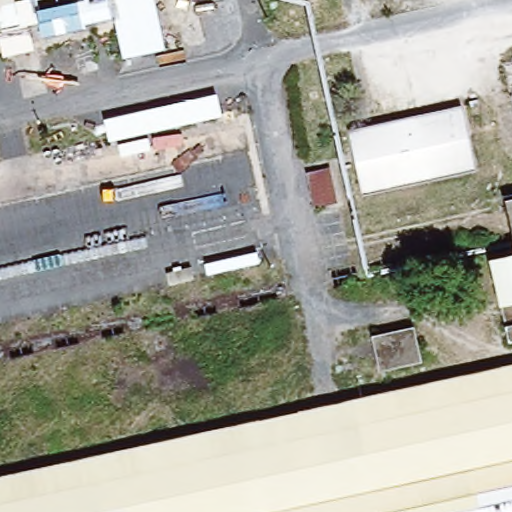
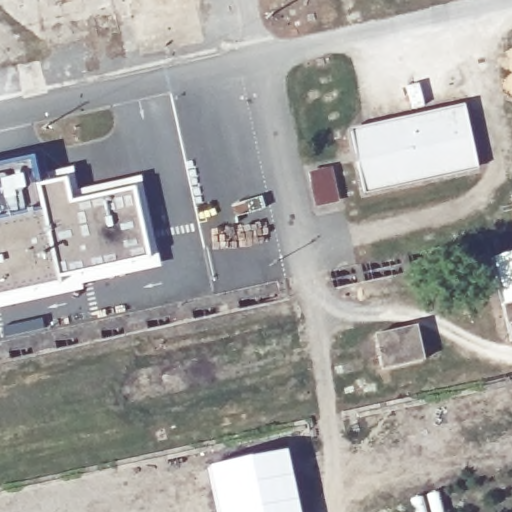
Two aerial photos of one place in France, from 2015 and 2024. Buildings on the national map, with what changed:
demolished [(165,50),(129,59),(115,19),(86,24),(87,28),(45,35),(43,21),(25,24),(14,2),(0,6),(0,0),(155,0),(165,50)]
demolished [(0,34),(0,25),(1,34),(0,34)]
unchanged [(459,107),(473,167),(364,192),(353,130),(459,107)]
new [(34,177),(72,169),(76,190),(138,177),(158,266),(78,283),(79,290),(0,307),(0,171),(32,165),(34,177)]
unchanged [(332,166),(339,205),(316,207),(309,170),(332,166)]
unchanged [(504,199),(512,197),(512,234),(504,199)]
unchanged [(508,291),(502,259),(512,258),(512,289),(508,291)]
unchanged [(510,338),(507,325),(501,305),(512,302),(512,338),(510,338)]
unchanged [(414,326),(422,360),(380,371),(371,335),(414,326)]
demolished [(0,512),(0,476),(512,363),(512,512),(0,512)]
new [(299,512),(212,512),(204,467),(286,450),(299,512)]

